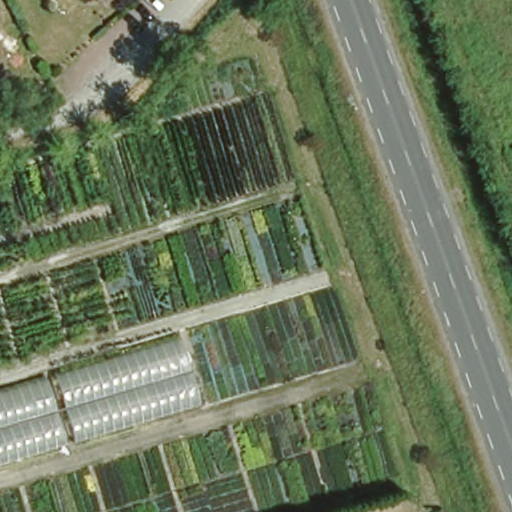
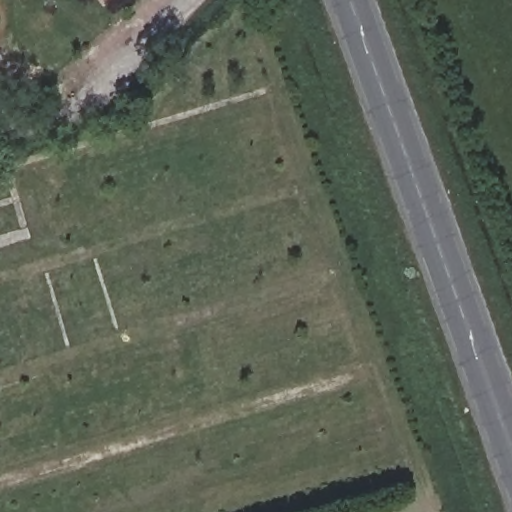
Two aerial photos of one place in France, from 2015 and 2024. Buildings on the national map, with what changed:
unchanged [(101,5),(96,0),(108,0),(101,5)]
demolished [(181,338),(202,403),(0,464),(0,390),(181,338)]

